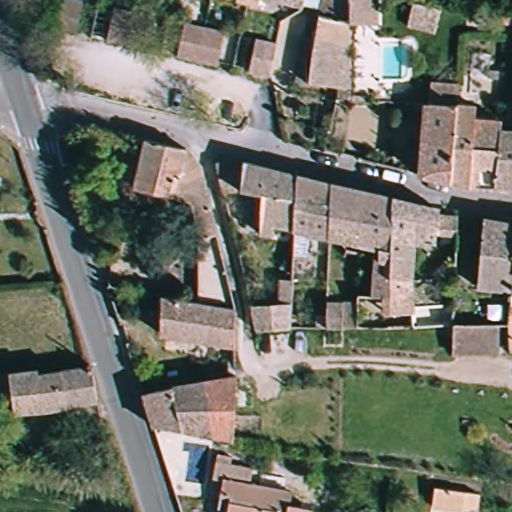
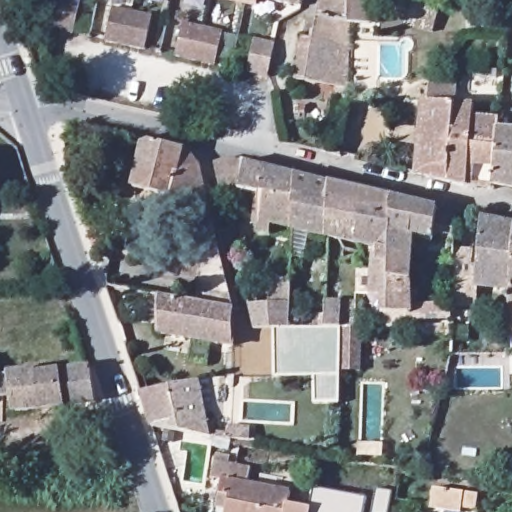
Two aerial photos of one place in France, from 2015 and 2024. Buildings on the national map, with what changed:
unchanged [(238,6),(228,4),(228,0),(240,0),(238,6)]
unchanged [(240,0),(251,0),(248,9),(238,6),(240,0)]
unchanged [(293,8),(256,0),(294,0),(293,8)]
unchanged [(298,85),(303,44),(316,46),(321,0),(347,0),(348,27),(351,94),(313,87),(306,86),(298,85)]
unchanged [(347,0),(379,0),(379,26),(348,27),(347,0)]
unchanged [(66,1),(85,5),(84,10),(80,24),(77,39),(57,34),(65,5),(66,1)]
unchanged [(121,46),(99,41),(107,12),(108,8),(129,12),(148,17),(147,21),(140,50),(121,46)]
unchanged [(196,62),(176,58),(184,29),(185,25),(204,30),(222,37),(216,67),(196,62)]
unchanged [(268,79),(246,74),(254,44),(254,41),(274,46),(274,49),(268,79)]
unchanged [(478,118),(499,121),(499,132),(497,191),(496,195),(489,195),(474,193),(459,190),(450,188),(423,181),(431,107),(434,87),(461,88),(459,108),(478,110),(478,118)]
unchanged [(497,191),(499,132),(512,134),(512,194),(497,191)]
unchanged [(206,176),(221,237),(201,242),(193,206),(141,196),(150,145),(179,152),(192,155),(201,169),(206,176)]
unchanged [(276,227),(275,235),(262,235),(261,231),(253,230),(253,217),(261,217),(261,200),(246,192),(228,196),(220,165),(233,159),(243,162),(248,164),(300,176),(301,209),(301,232),(276,227)]
unchanged [(364,192),(396,200),(392,250),(381,249),(363,245),(335,239),(301,232),(301,209),(300,176),(323,182),(334,185),(364,192)]
unchanged [(396,200),(441,210),(441,215),(461,217),(461,221),(460,247),(439,245),(420,242),(416,328),(380,328),(359,329),(361,295),(373,296),(376,261),(381,261),(381,249),(392,250),(396,200)]
unchanged [(512,226),(506,292),(473,288),(480,221),(512,226)]
unchanged [(503,321),(506,292),(512,226),(512,321),(503,321)]
unchanged [(208,276),(201,242),(221,237),(223,250),(241,315),(225,312),(208,276)]
unchanged [(362,278),(362,283),(346,283),(348,251),(363,253),(362,278)]
unchanged [(276,287),(291,288),(294,265),(304,266),(303,287),(299,287),(297,323),(289,323),(288,335),(258,336),(253,318),(251,310),(276,308),(276,287)]
unchanged [(165,301),(219,311),(225,312),(241,315),(241,346),(241,354),(168,338),(165,301)]
unchanged [(328,330),(331,301),(346,301),(345,330),(328,330)]
unchanged [(468,322),(503,321),(512,321),(512,350),(447,357),(447,327),(448,322),(468,322)]
new [(314,376),(274,377),(274,335),(288,335),(288,327),(329,326),(328,330),(345,330),(345,326),(359,329),(363,329),(361,371),(341,371),(339,403),(314,402),(314,376)]
unchanged [(83,365),(87,367),(92,400),(10,413),(5,398),(0,399),(0,374),(31,370),(33,374),(83,365)]
unchanged [(229,442),(147,427),(137,393),(229,377),(229,442)]
unchanged [(229,485),(218,482),(221,466),(258,472),(255,487),(296,495),(294,507),(312,510),(316,511),(316,512),(225,512),(226,500),(229,485)]
new [(312,510),(316,490),(365,498),(363,512),(316,512),(316,511),(312,510)]
unchanged [(482,512),(434,512),(437,490),(484,496),(482,512)]

